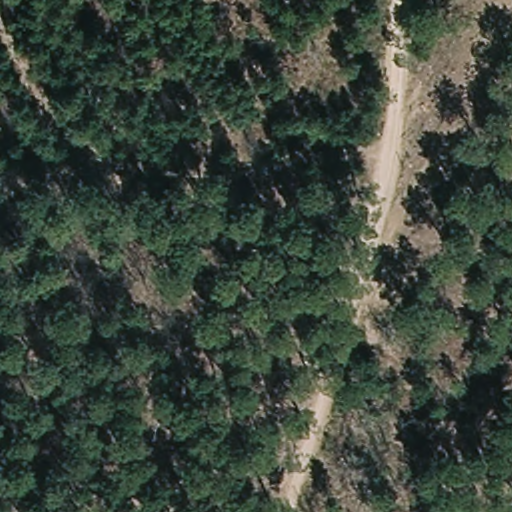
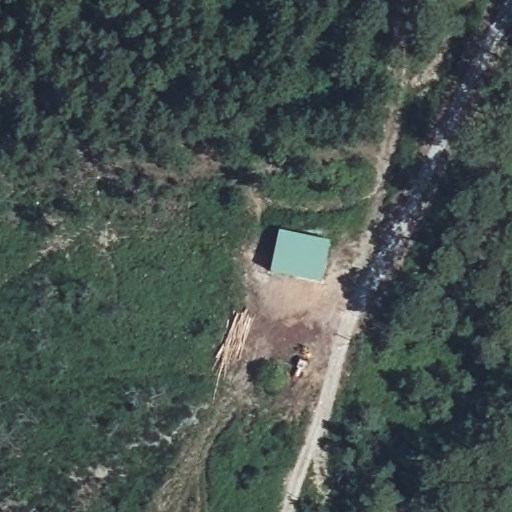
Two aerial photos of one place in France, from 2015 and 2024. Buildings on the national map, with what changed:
new [(330,242),(321,283),(271,272),(280,231),(330,242)]

